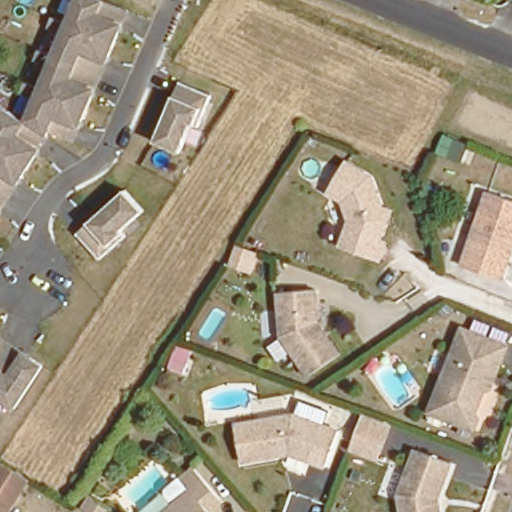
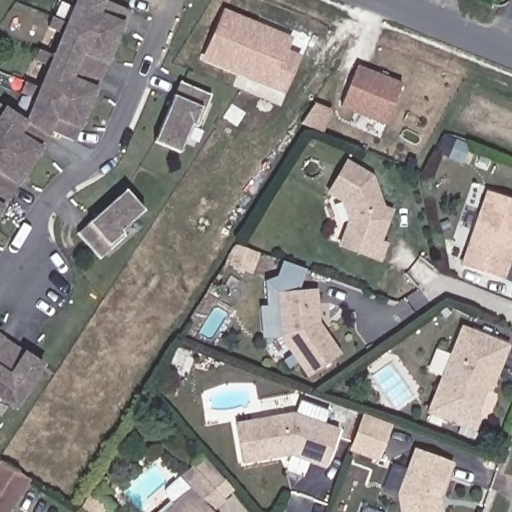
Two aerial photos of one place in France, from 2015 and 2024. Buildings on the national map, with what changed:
unchanged [(1,116),(0,116),(0,103),(27,121),(38,97),(21,90),(26,81),(41,88),(51,65),(35,58),(40,48),(55,55),(65,32),(50,25),(53,16),(69,24),(79,0),(106,0),(130,10),(74,141),(50,130),(48,135),(50,136),(0,211),(0,118),(1,116)]
new [(228,12),(293,39),(288,50),(302,55),(289,90),(210,59),(228,12)]
new [(360,67),(405,84),(391,120),(346,103),(360,67)]
unchanged [(212,96),(199,128),(193,125),(181,154),(156,142),(181,82),(212,96)]
unchanged [(388,218),(380,239),(385,241),(379,257),(340,242),(351,217),(343,196),(329,190),(346,160),(372,175),(385,207),(391,210),(388,218)]
unchanged [(147,210),(125,230),(130,235),(104,258),(80,232),(130,190),(147,210)]
unchanged [(512,250),(502,280),(461,265),(487,192),(512,200),(512,250)]
unchanged [(315,325),(337,356),(307,377),(278,338),(274,294),(312,291),(315,325)]
unchanged [(475,430),(428,411),(463,327),(508,346),(500,367),(494,381),(491,388),(479,418),(475,430)]
unchanged [(15,408),(0,399),(0,338),(43,367),(15,408)]
unchanged [(294,412),(339,430),(325,465),(290,451),(242,459),(236,421),(294,412)]
new [(364,415),(391,425),(379,457),(352,448),(364,415)]
unchanged [(436,496),(439,512),(401,512),(397,492),(415,447),(450,461),(436,496)]
unchanged [(3,460),(30,477),(14,503),(7,512),(0,512),(0,464),(3,460)]
unchanged [(181,478),(195,467),(224,502),(213,512),(164,512),(191,489),(181,478)]

